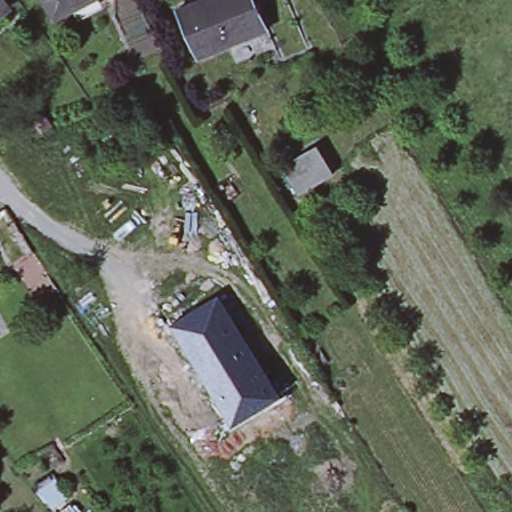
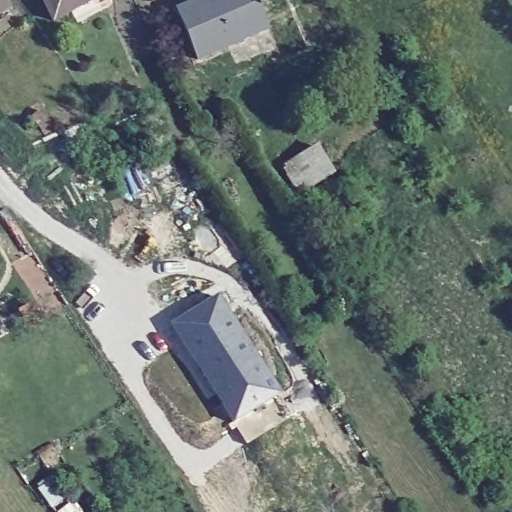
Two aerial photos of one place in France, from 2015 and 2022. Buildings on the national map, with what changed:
unchanged [(75,21),(70,10),(52,18),(44,0),(64,0),(77,20),(75,21)]
unchanged [(101,9),(77,20),(70,10),(64,0),(97,0),(101,9)]
unchanged [(201,0),(228,0),(232,9),(247,2),(249,6),(255,3),(266,27),(197,57),(176,10),(201,0)]
unchanged [(0,10),(0,1),(4,6),(0,10)]
unchanged [(317,144),(335,185),(297,207),(279,170),(317,144)]
unchanged [(277,395),(234,422),(172,329),(218,298),(277,395)]

